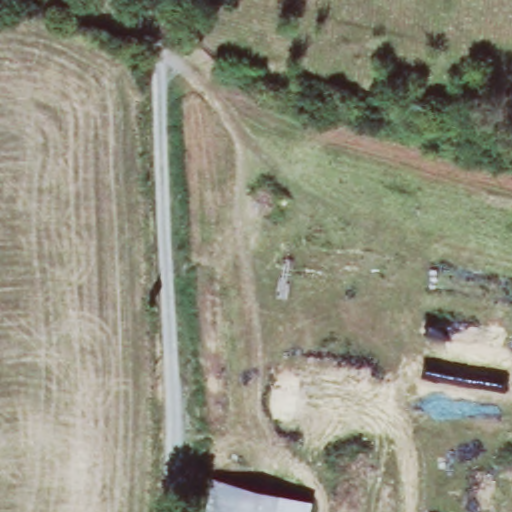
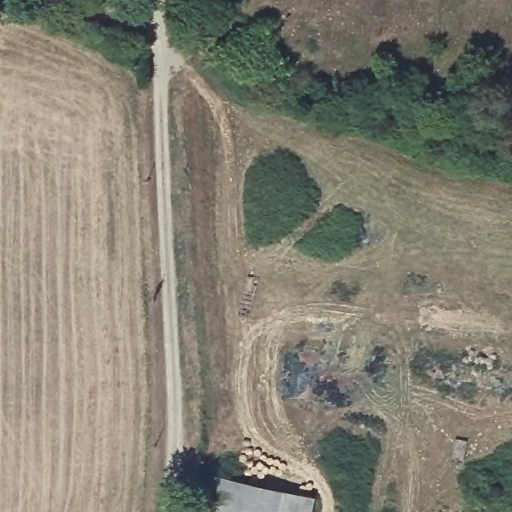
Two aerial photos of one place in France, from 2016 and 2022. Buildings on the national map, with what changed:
unchanged [(220,477),(321,496),(318,512),(213,512),(220,477)]

